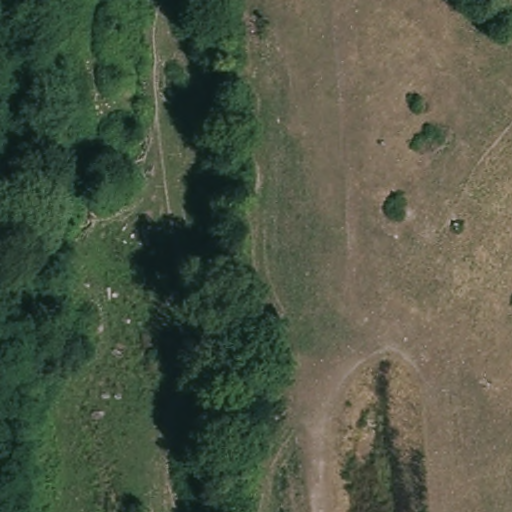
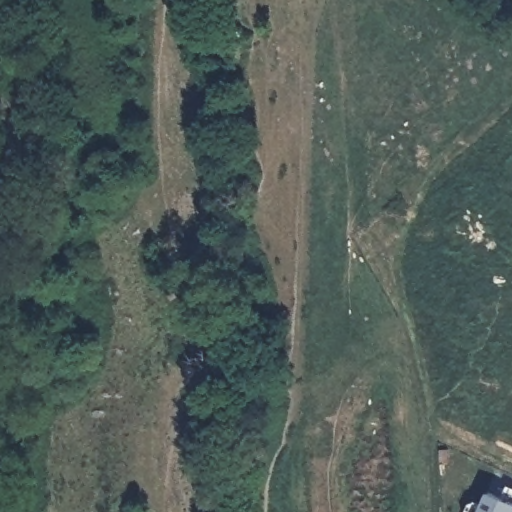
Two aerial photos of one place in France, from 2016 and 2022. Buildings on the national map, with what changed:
new [(512,507),(512,512),(478,512),(486,496),(512,507)]

